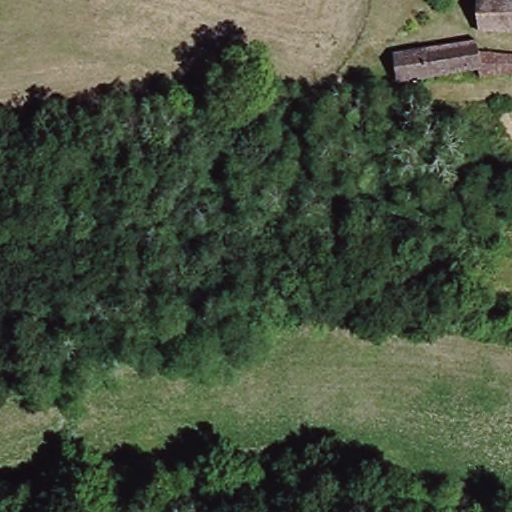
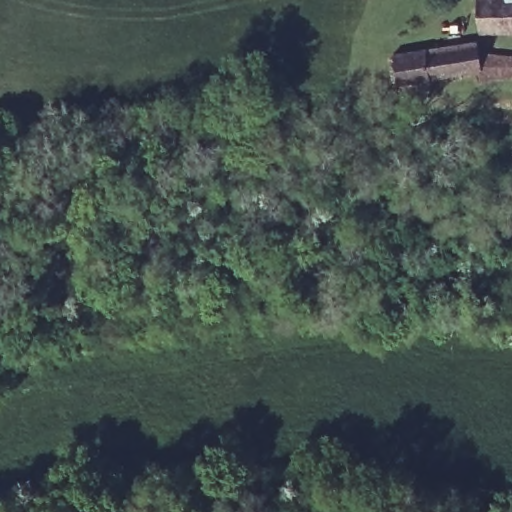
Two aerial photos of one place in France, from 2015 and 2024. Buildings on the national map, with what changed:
unchanged [(481,36),(480,0),(512,0),(512,35),(481,36)]
unchanged [(397,84),(392,57),(478,44),(479,55),(482,71),(397,84)]
unchanged [(484,81),(482,71),(479,55),(512,58),(512,78),(484,81)]

